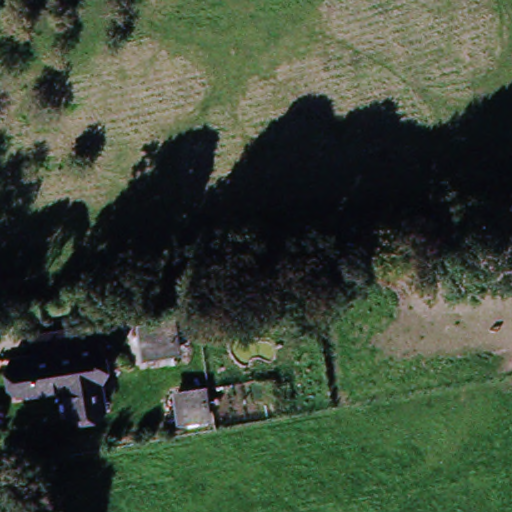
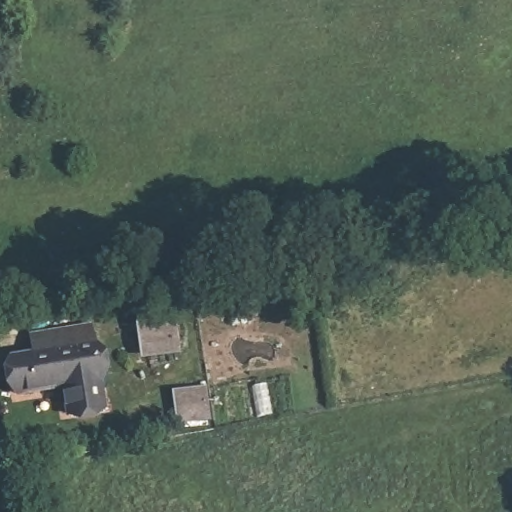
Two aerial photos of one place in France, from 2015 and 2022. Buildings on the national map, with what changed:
unchanged [(175,352),(143,357),(139,327),(170,322),(175,352)]
unchanged [(108,410),(67,418),(62,391),(13,398),(7,357),(50,351),(47,331),(89,325),(92,344),(95,343),(108,410)]
unchanged [(205,421),(178,425),(174,394),(200,390),(205,421)]
unchanged [(2,487),(5,507),(0,508),(0,487),(2,487)]

